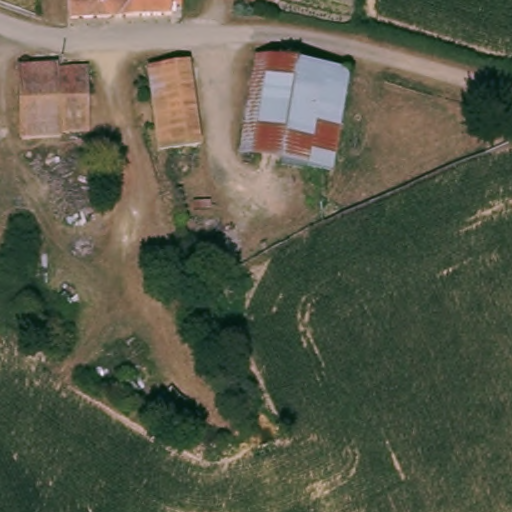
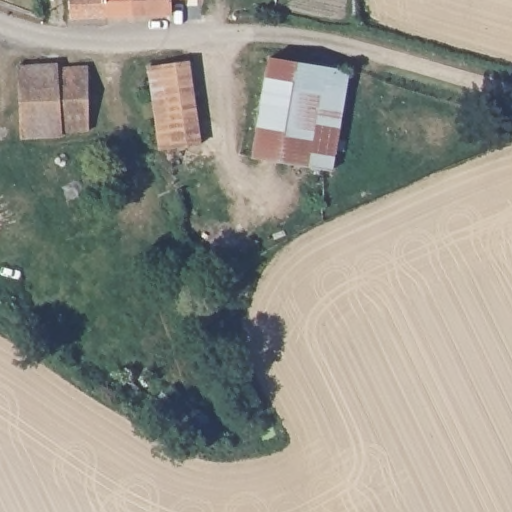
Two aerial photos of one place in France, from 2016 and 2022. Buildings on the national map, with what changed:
unchanged [(70,17),(70,0),(173,0),(173,16),(70,17)]
unchanged [(342,70),(323,170),(273,160),(245,155),(265,53),(333,67),(342,70)]
unchanged [(52,60),(53,67),(81,66),(83,68),(89,128),(57,131),(61,139),(32,139),(26,139),(22,139),(18,110),(14,62),(52,60)]
unchanged [(191,64),(199,145),(158,150),(151,69),(191,64)]

